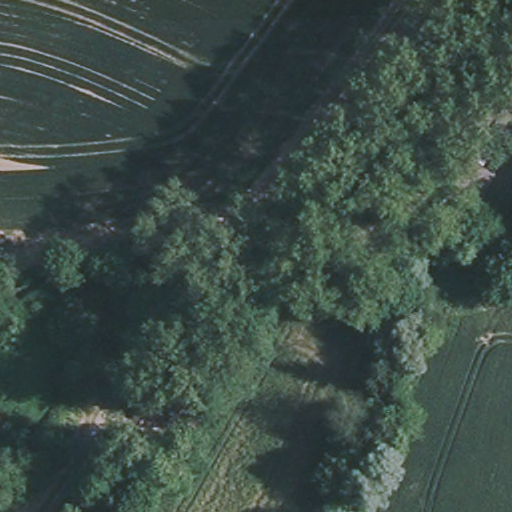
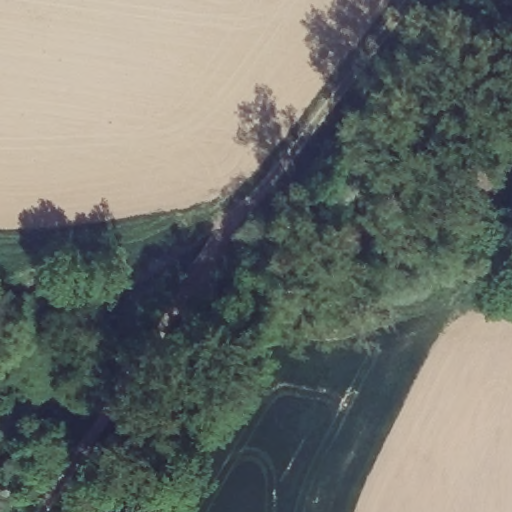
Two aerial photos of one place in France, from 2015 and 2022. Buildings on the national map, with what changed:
unchanged [(475,150),(502,165),(470,219),(440,204),(475,150)]

